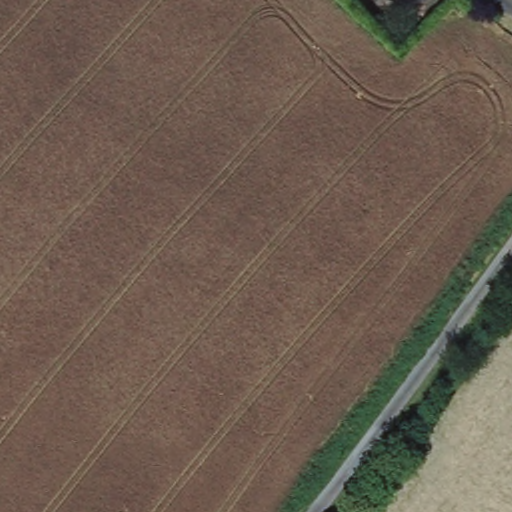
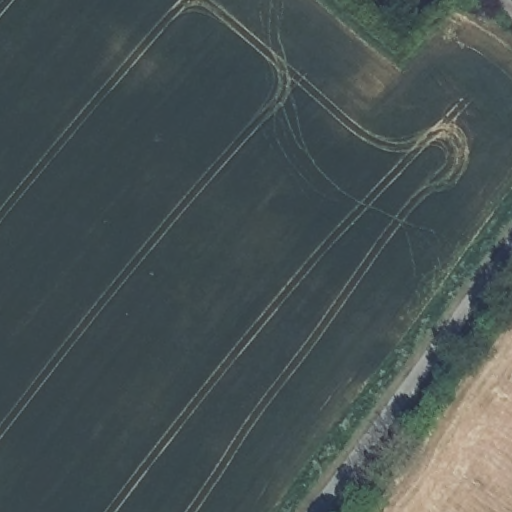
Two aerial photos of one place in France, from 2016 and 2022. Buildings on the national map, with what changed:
[]

